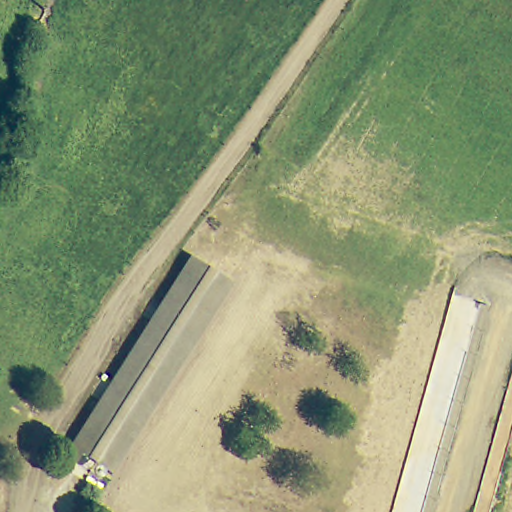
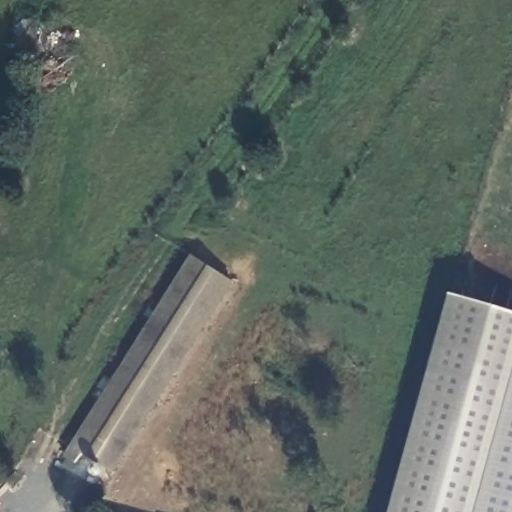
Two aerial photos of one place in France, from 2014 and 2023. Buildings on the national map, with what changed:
unchanged [(232,282),(110,475),(79,455),(72,465),(62,459),(190,256),(232,282)]
new [(512,313),(512,438),(491,512),(391,512),(452,296),(512,313)]
new [(491,512),(512,438),(512,512),(491,512)]

